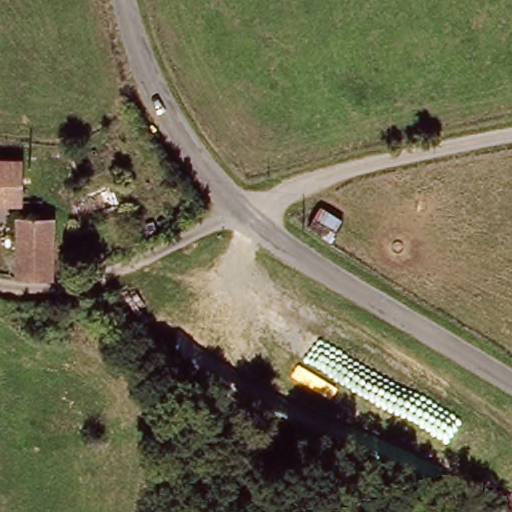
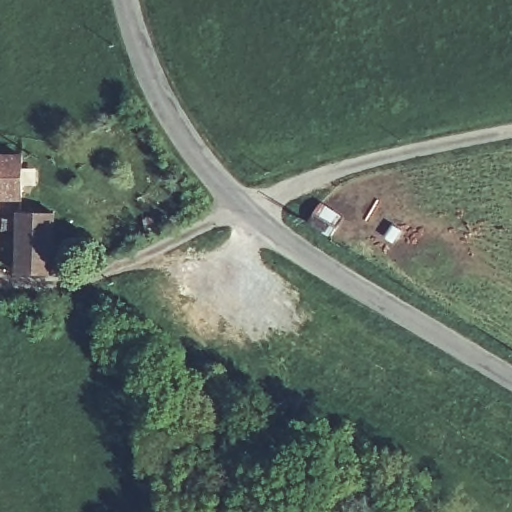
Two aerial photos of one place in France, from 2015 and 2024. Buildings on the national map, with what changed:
unchanged [(33,199),(0,199),(0,156),(32,156),(33,199)]
unchanged [(346,206),(336,227),(315,217),(325,196),(346,206)]
unchanged [(23,213),(48,213),(50,270),(25,273),(23,213)]

